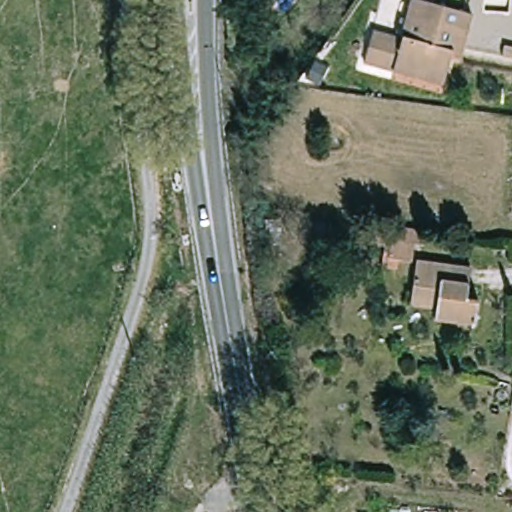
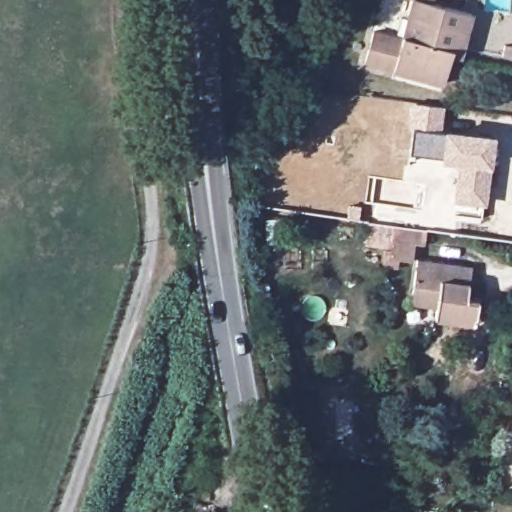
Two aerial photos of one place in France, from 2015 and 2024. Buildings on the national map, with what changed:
unchanged [(400,76),(362,68),(368,33),(407,41),(414,0),(416,0),(475,12),(469,48),(467,61),(452,59),(450,75),(448,86),(400,76)]
unchanged [(416,0),(436,0),(435,4),(416,0)]
new [(487,205),(452,201),(457,163),(440,160),(440,155),(410,151),(414,103),(443,106),(442,127),(496,134),(487,205)]
unchanged [(429,248),(419,248),(417,263),(394,261),(397,228),(430,232),(429,248)]
unchanged [(415,294),(420,265),(472,272),(469,302),(480,304),(477,329),(435,322),(437,308),(414,305),(415,294)]

